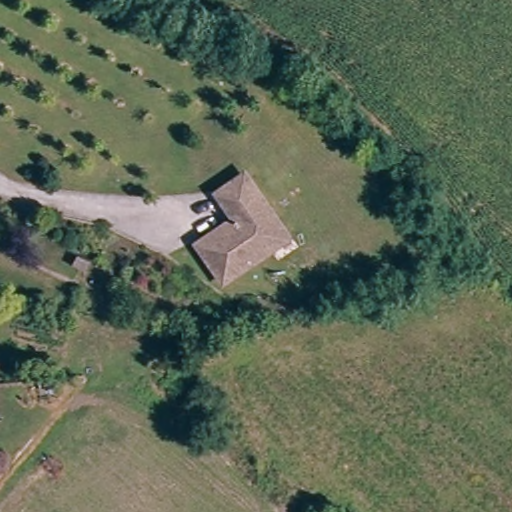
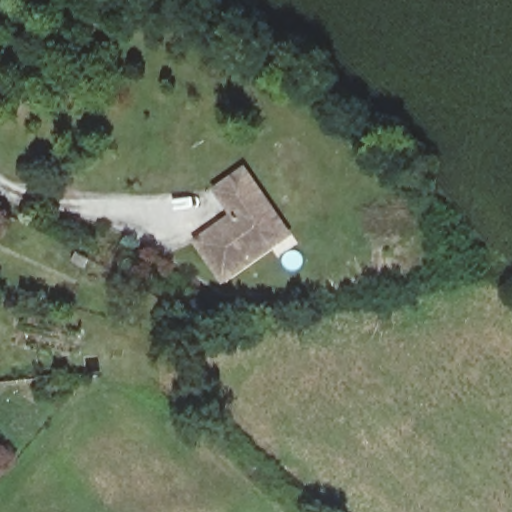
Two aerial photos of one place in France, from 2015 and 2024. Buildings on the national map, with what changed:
unchanged [(270,248),(223,280),(197,242),(220,225),(234,214),(218,190),(245,172),(282,226),(288,236),(270,248)]

